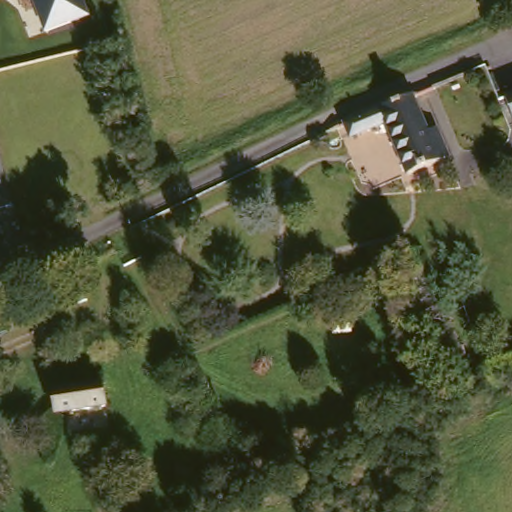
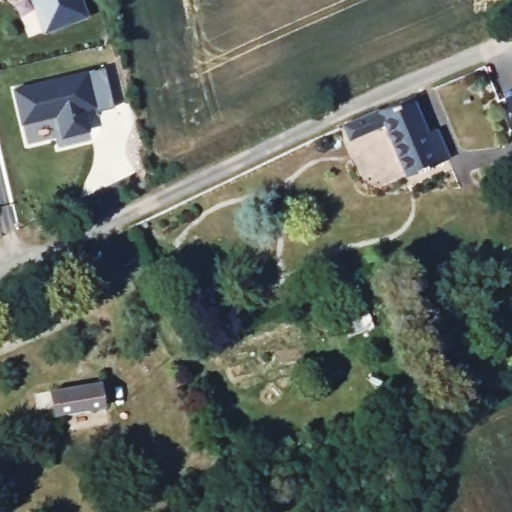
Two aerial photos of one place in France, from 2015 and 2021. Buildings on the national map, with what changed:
unchanged [(34,0),(84,0),(90,15),(44,31),(34,0)]
new [(115,107),(98,111),(97,107),(88,109),(92,131),(63,137),(59,116),(23,123),(13,87),(105,67),(115,107)]
unchanged [(442,147),(433,150),(404,160),(390,117),(349,134),(342,119),(414,88),(427,131),(436,127),(442,147)]
unchanged [(512,90),(512,118),(502,94),(512,90)]
unchanged [(104,382),(108,402),(58,411),(54,391),(104,382)]

